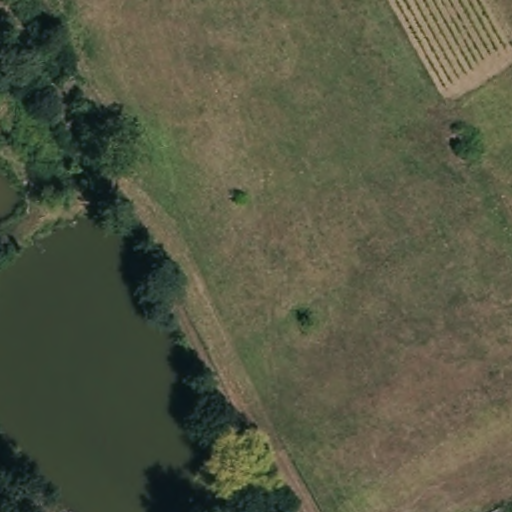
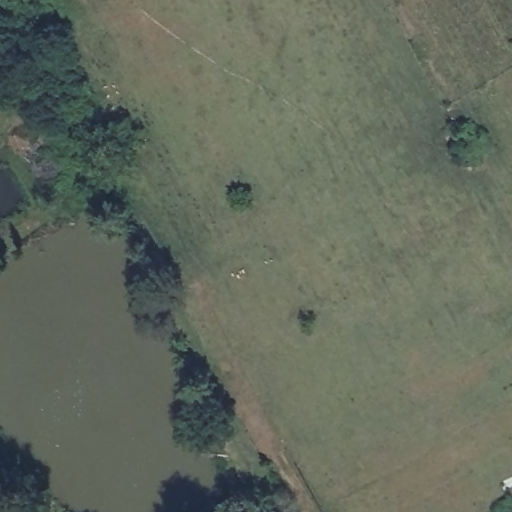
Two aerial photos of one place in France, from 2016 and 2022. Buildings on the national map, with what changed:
[]

